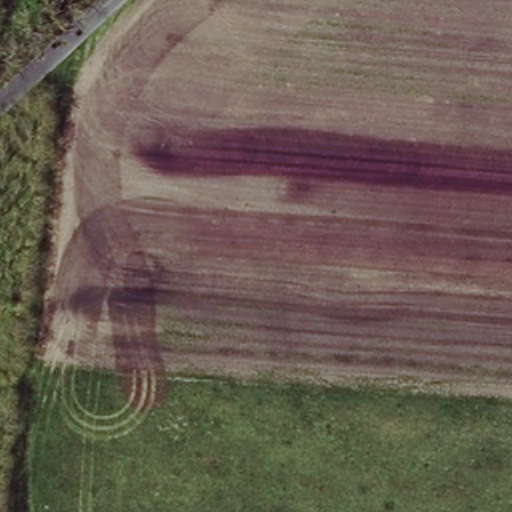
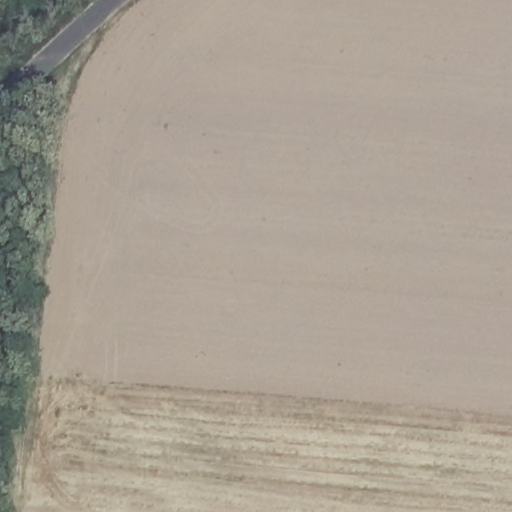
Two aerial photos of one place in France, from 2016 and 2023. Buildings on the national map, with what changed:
[]

